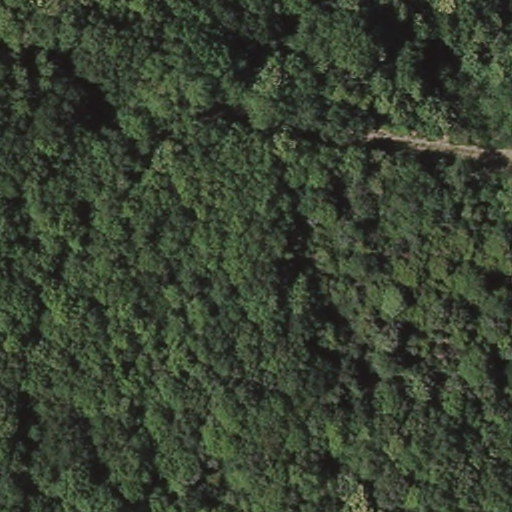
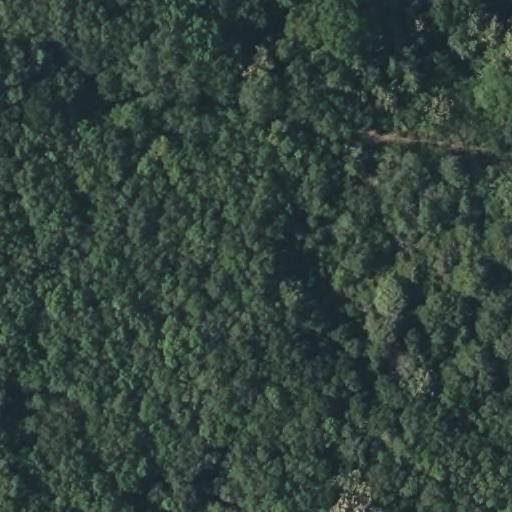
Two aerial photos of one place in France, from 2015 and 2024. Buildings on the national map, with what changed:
[]

